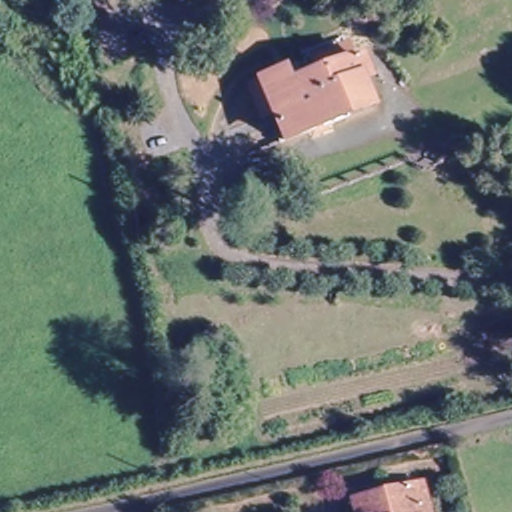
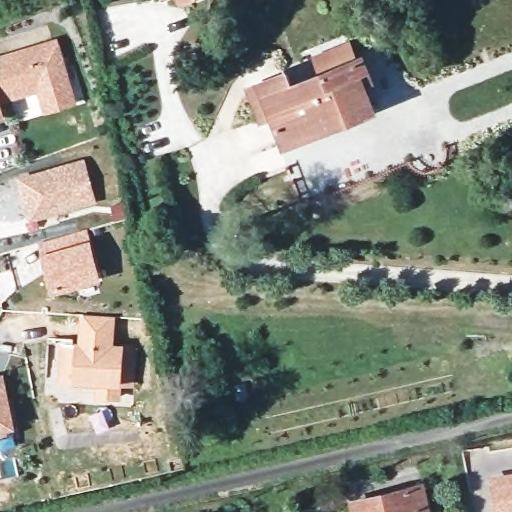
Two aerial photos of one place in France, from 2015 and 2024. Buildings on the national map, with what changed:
unchanged [(185,0),(181,1),(181,0),(185,0)]
new [(78,104),(45,114),(37,91),(3,102),(7,117),(0,120),(0,54),(58,36),(78,104)]
unchanged [(281,137),(270,109),(257,114),(245,83),(281,68),(287,82),(354,55),(362,75),(354,77),(364,103),(322,120),(304,127),(281,137)]
new [(98,201),(32,219),(19,177),(83,160),(98,201)]
new [(89,240),(102,278),(54,294),(42,252),(39,240),(87,227),(89,240)]
new [(79,343),(80,313),(117,315),(116,339),(138,342),(135,386),(122,386),(121,400),(96,398),(98,383),(74,382),(59,383),(60,345),(79,343)]
new [(14,428),(0,431),(0,376),(4,375),(14,428)]
new [(488,475),(512,472),(512,512),(494,512),(488,475)]
unchanged [(417,480),(425,512),(354,512),(350,497),(417,480)]

